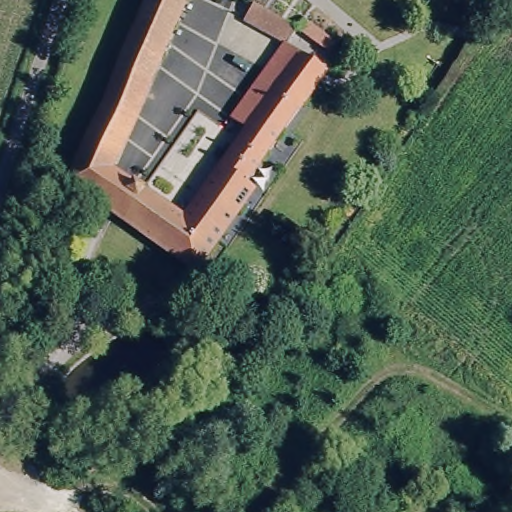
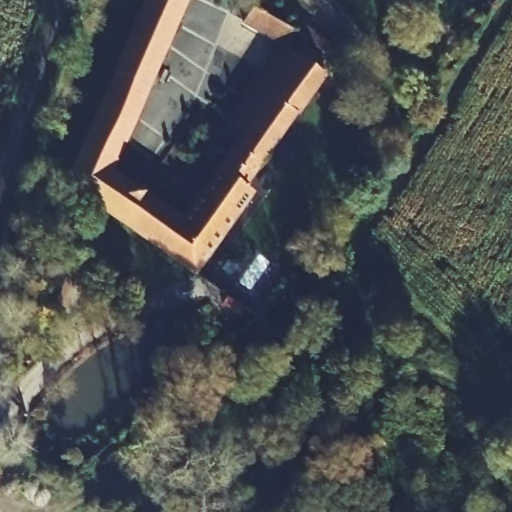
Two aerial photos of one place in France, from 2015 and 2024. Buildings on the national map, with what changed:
unchanged [(250,189),(255,192),(196,272),(183,262),(167,286),(104,242),(118,221),(65,185),(149,0),(186,0),(110,170),(184,221),(256,112),(241,102),(285,46),(245,21),(253,8),(296,31),(302,24),(341,51),(250,189)]

